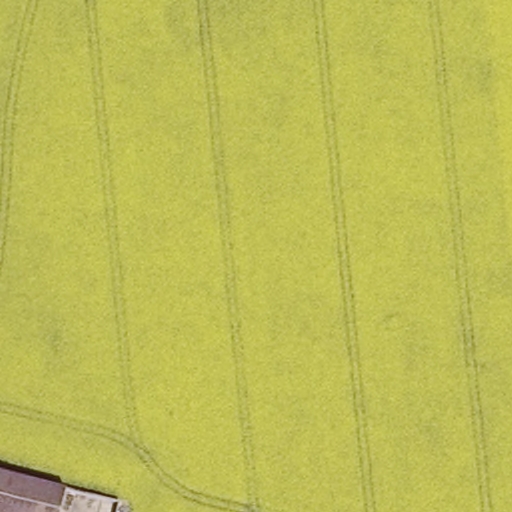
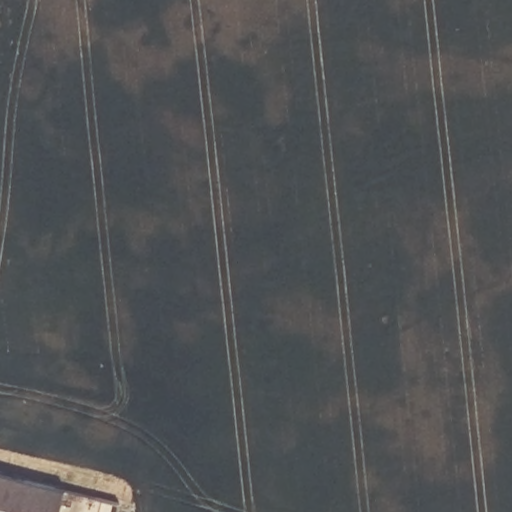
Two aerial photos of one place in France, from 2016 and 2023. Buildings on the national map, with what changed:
unchanged [(62,494),(58,512),(0,512),(0,479),(62,494)]

